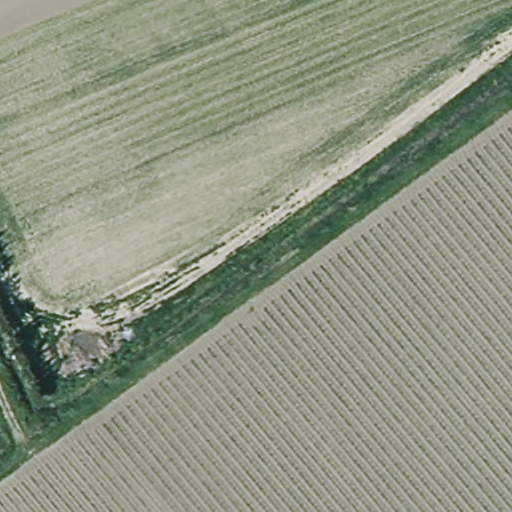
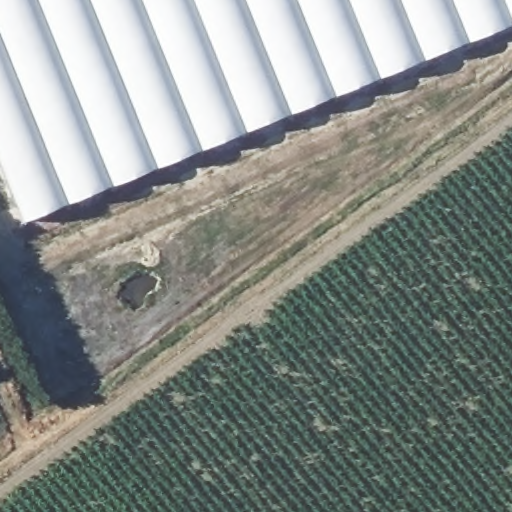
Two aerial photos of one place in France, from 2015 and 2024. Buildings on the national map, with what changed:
new [(23,226),(0,170),(0,0),(512,0),(512,28),(23,226)]

